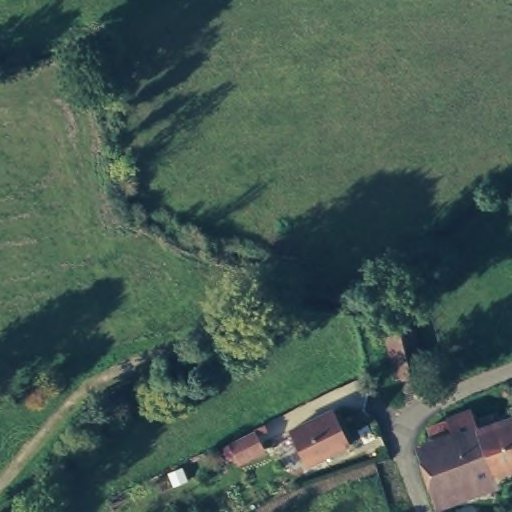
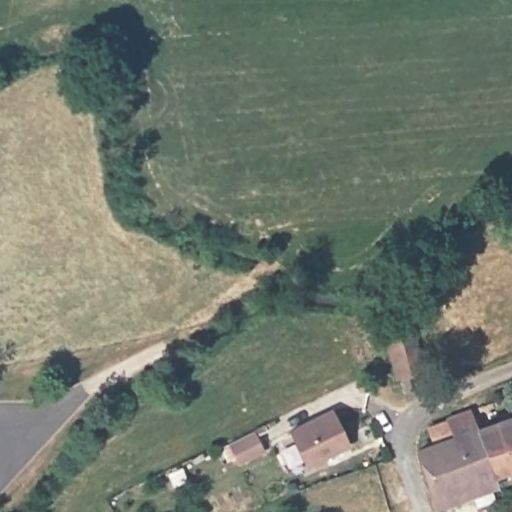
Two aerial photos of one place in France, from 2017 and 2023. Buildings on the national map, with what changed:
unchanged [(417,317),(431,370),(398,380),(382,325),(417,317)]
unchanged [(469,406),(479,430),(512,420),(512,469),(437,496),(421,449),(437,443),(429,426),(426,417),(446,409),(449,413),(469,406)]
unchanged [(336,408),(353,442),(310,463),(294,428),(336,408)]
unchanged [(246,433),(255,453),(230,466),(220,446),(246,433)]

